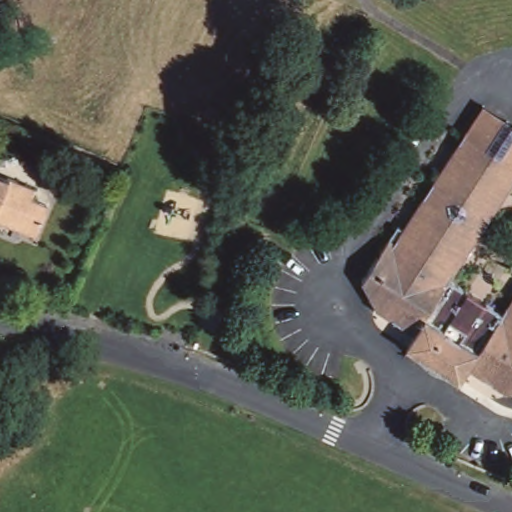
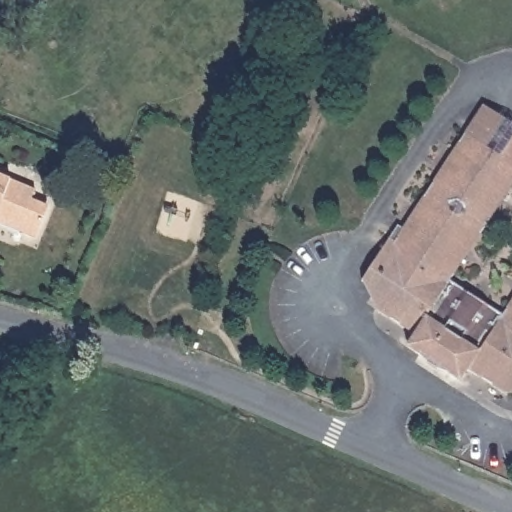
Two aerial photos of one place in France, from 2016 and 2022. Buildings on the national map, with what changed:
unchanged [(487,106),(512,123),(512,173),(465,141),(487,106)]
unchanged [(388,247),(465,141),(512,173),(512,189),(445,285),(497,319),(512,297),(512,384),(508,382),(499,394),(460,369),(451,381),(400,348),(407,336),(369,310),(377,298),(356,284),(383,245),(388,247)]
unchanged [(30,190),(25,201),(41,208),(29,237),(0,224),(0,177),(30,190)]

